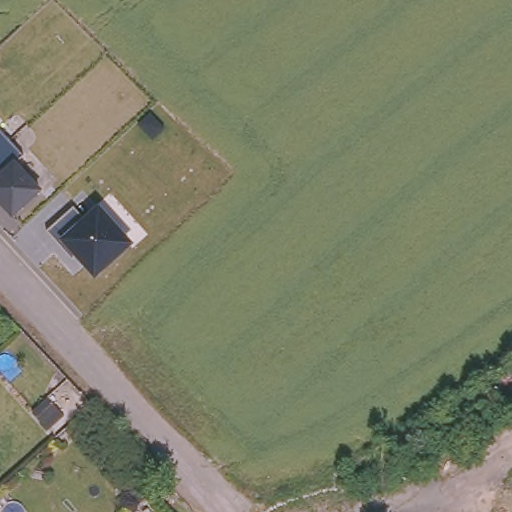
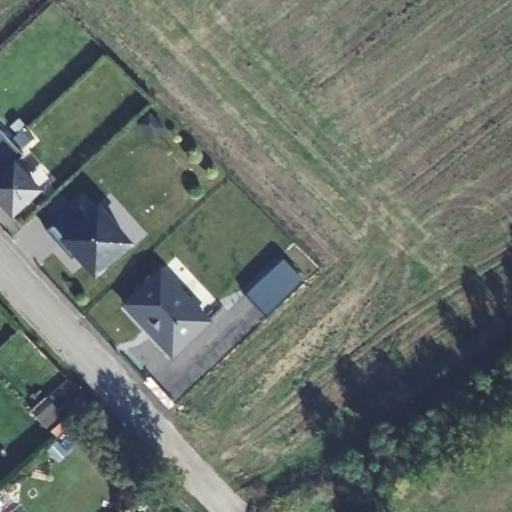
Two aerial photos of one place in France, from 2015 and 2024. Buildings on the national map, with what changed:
unchanged [(23,153),(13,161),(22,170),(39,188),(12,214),(0,202),(0,173),(0,130),(8,138),(23,153)]
unchanged [(83,219),(99,206),(134,245),(95,280),(74,256),(71,258),(48,231),(73,208),(83,219)]
new [(247,294),(284,259),(305,283),(268,317),(247,294)]
new [(123,306),(163,269),(211,322),(173,358),(123,306)]
unchanged [(48,401),(58,413),(43,426),(33,415),(48,401)]

